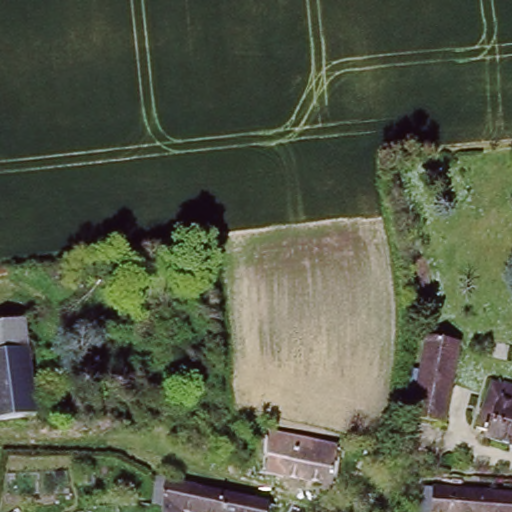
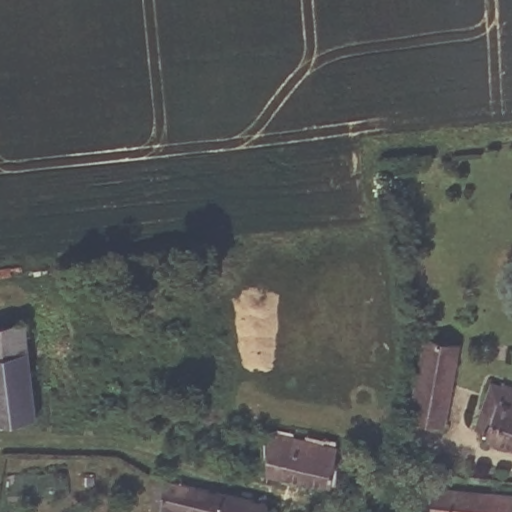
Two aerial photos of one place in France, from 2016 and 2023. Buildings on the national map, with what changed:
unchanged [(25,345),(0,351),(0,322),(21,318),(25,345)]
unchanged [(446,422),(412,417),(415,395),(403,394),(407,369),(417,370),(418,360),(421,337),(457,340),(453,369),(446,422)]
unchanged [(0,423),(0,351),(25,345),(37,416),(0,423)]
unchanged [(492,403),(481,401),(484,384),(512,392),(512,449),(482,441),(492,403)]
unchanged [(266,440),(253,439),(253,430),(265,430),(266,440)]
unchanged [(268,473),(266,440),(290,441),(291,436),(334,444),(331,481),(268,473)]
unchanged [(153,509),(156,477),(198,487),(195,512),(161,512),(161,509),(153,509)]
unchanged [(423,512),(424,483),(436,484),(512,490),(512,512),(423,512)]
unchanged [(269,499),(268,512),(195,512),(198,487),(269,499)]

